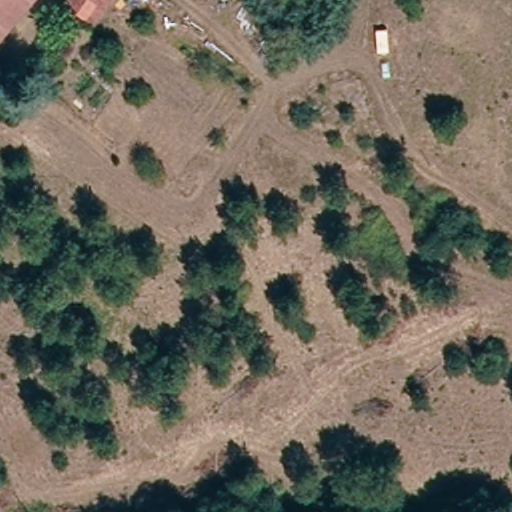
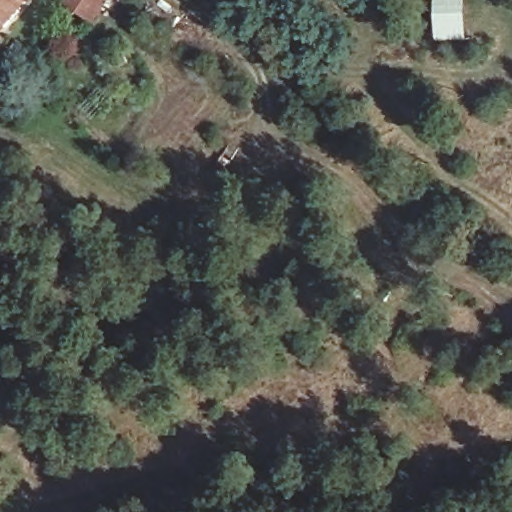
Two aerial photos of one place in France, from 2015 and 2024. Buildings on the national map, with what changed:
unchanged [(0,21),(0,0),(18,0),(0,21)]
unchanged [(65,4),(68,0),(106,0),(90,23),(65,4)]
new [(437,36),(436,0),(466,0),(467,35),(437,36)]

